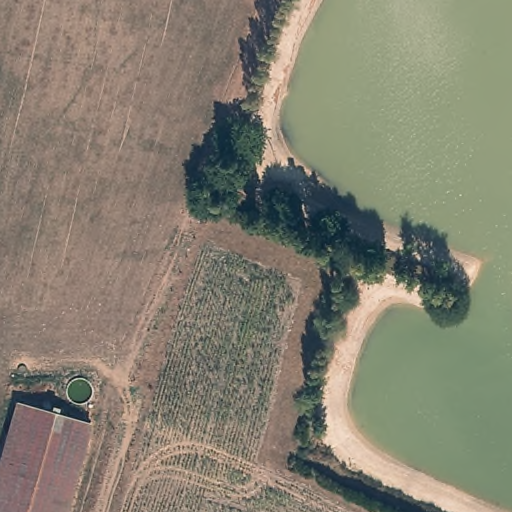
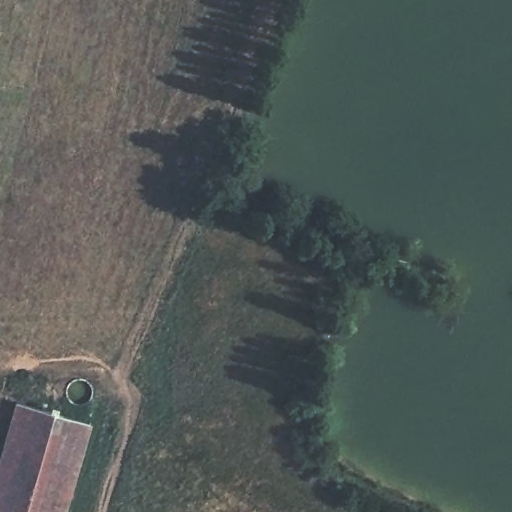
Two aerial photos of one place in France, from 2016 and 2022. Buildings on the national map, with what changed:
unchanged [(93,427),(68,512),(0,512),(0,468),(19,406),(93,427)]

